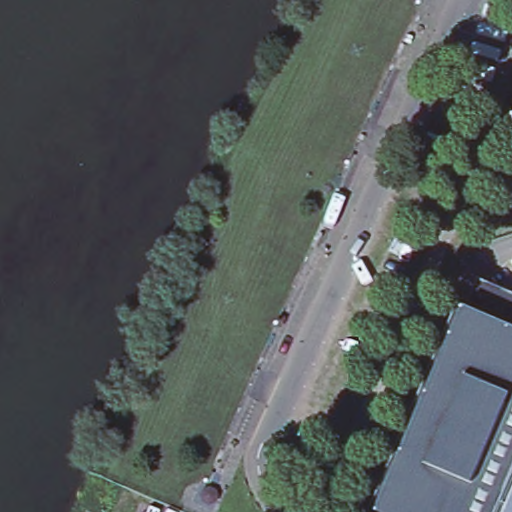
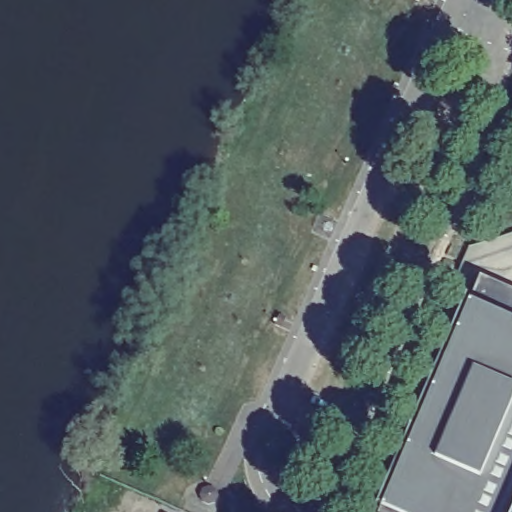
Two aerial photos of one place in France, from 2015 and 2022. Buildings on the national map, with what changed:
unchanged [(479,279),(512,292),(512,483),(500,512),(382,512),(479,279)]
unchanged [(512,483),(512,512),(500,512),(512,483)]

